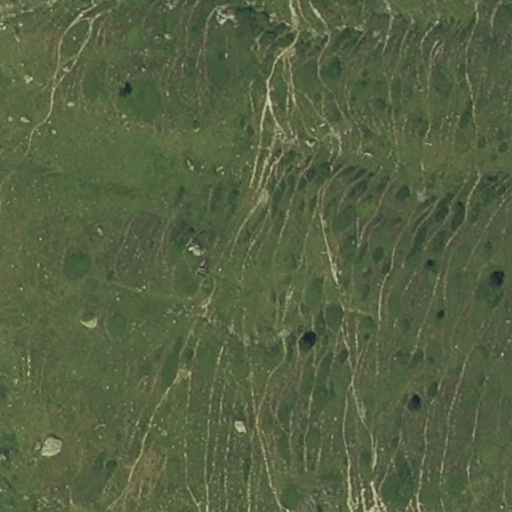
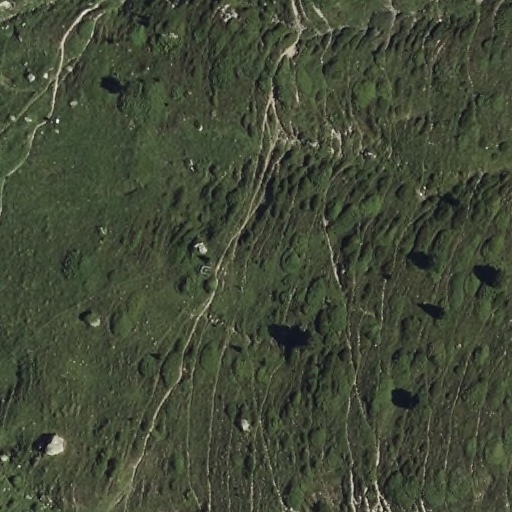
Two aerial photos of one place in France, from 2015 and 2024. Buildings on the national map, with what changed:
[]

